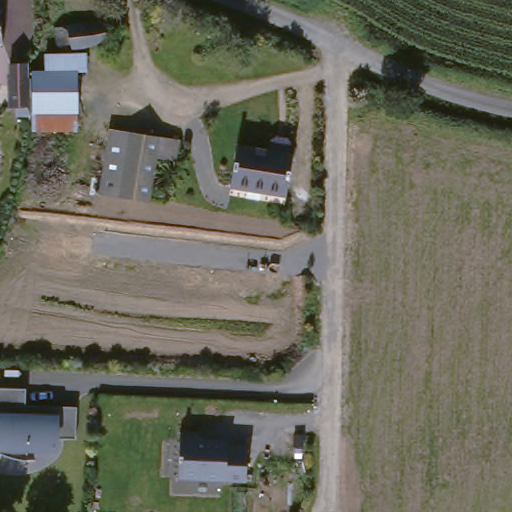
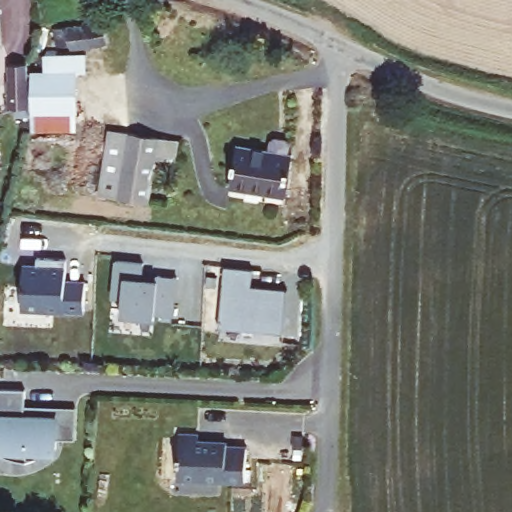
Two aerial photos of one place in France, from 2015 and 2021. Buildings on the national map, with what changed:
unchanged [(48,36),(107,30),(110,54),(109,54),(48,60),(48,36)]
unchanged [(28,109),(6,111),(4,68),(28,66),(29,78),(28,109)]
unchanged [(26,133),(28,115),(28,109),(29,78),(35,78),(48,76),(62,76),(71,76),(73,114),(70,114),(71,131),(26,133)]
unchanged [(96,201),(109,135),(140,140),(161,143),(158,165),(136,161),(128,207),(96,201)]
unchanged [(232,193),(239,153),(293,162),(286,203),(232,193)]
new [(86,313),(21,312),(21,264),(38,263),(39,257),(66,259),(64,278),(86,280),(86,313)]
new [(175,316),(155,310),(154,320),(121,318),(121,299),(113,299),(115,260),(143,262),(142,273),(178,277),(175,316)]
new [(254,269),(253,285),(286,288),(283,333),(220,326),(224,267),(254,269)]
unchanged [(0,385),(30,386),(30,402),(81,403),(81,435),(61,435),(61,444),(33,444),(32,457),(17,455),(4,450),(4,444),(0,443),(0,385)]
unchanged [(209,431),(208,439),(236,441),(236,443),(256,444),(255,477),(188,474),(189,430),(209,431)]

